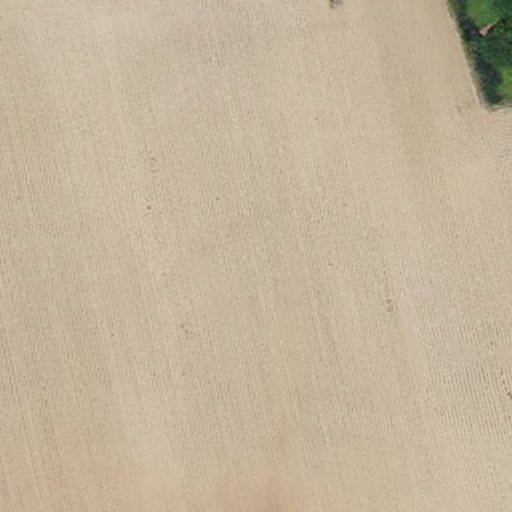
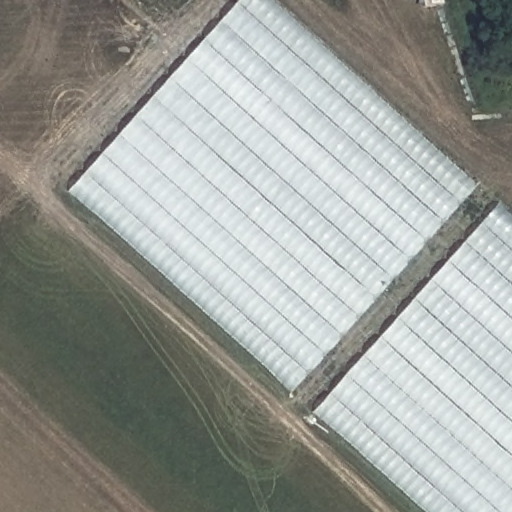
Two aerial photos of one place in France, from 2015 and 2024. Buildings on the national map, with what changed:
new [(66,190),(236,0),(273,0),(477,184),(292,392),(66,190)]
new [(312,411),(498,201),(512,214),(512,512),(425,512),(312,411)]

